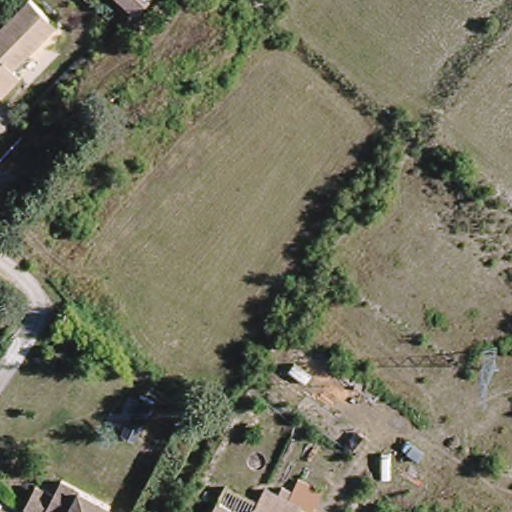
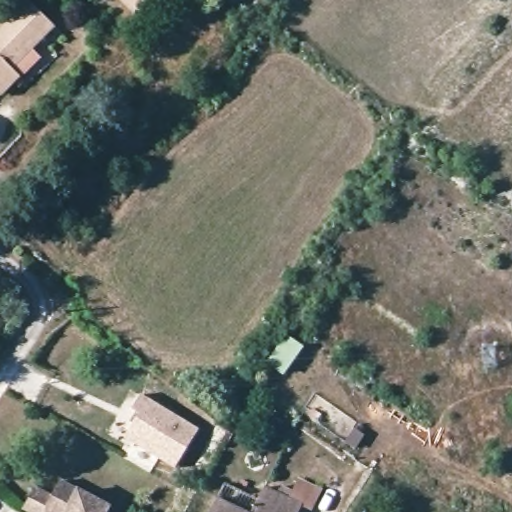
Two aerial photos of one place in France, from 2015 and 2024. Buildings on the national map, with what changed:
unchanged [(127,0),(148,0),(139,11),(127,0)]
unchanged [(5,99),(0,95),(0,31),(24,2),(53,26),(61,32),(22,79),(5,99)]
new [(142,411),(135,407),(141,397),(198,431),(177,466),(127,436),(142,411)]
unchanged [(302,512),(208,512),(226,487),(235,474),(260,492),(269,480),(307,505),(302,512)]
unchanged [(45,488),(59,498),(69,486),(108,512),(29,512),(28,511),(45,488)]

